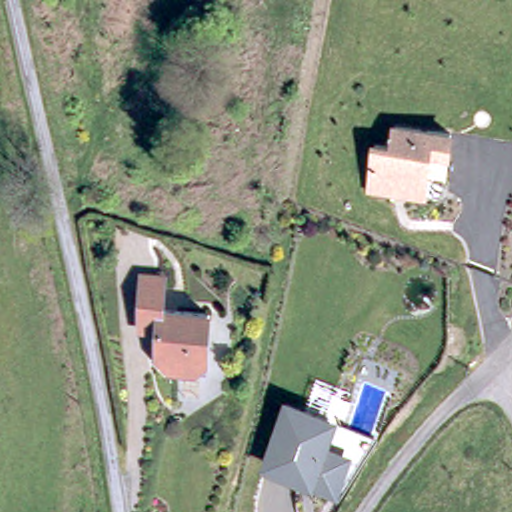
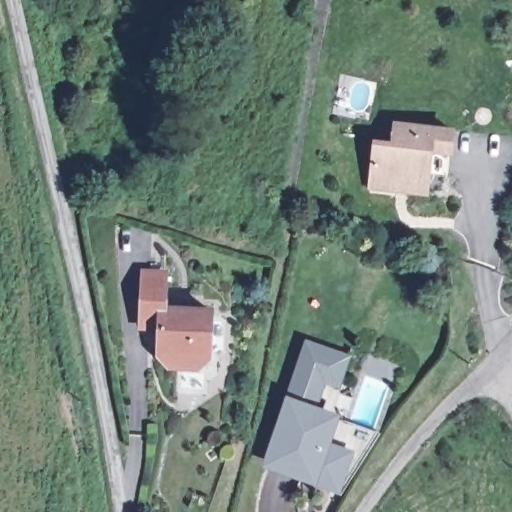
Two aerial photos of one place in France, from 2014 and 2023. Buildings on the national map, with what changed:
unchanged [(454,155),(436,154),(434,195),(371,189),(376,136),(393,140),(397,119),(457,128),(454,155)]
unchanged [(163,307),(201,309),(202,365),(164,363),(165,330),(149,330),(136,330),(135,270),(154,270),(163,270),(163,307)]
new [(287,396),(305,339),(353,354),(341,388),(328,383),(319,406),(287,396)]
unchanged [(287,396),(339,413),(331,439),(354,450),(339,492),(316,483),(265,466),(287,396)]

